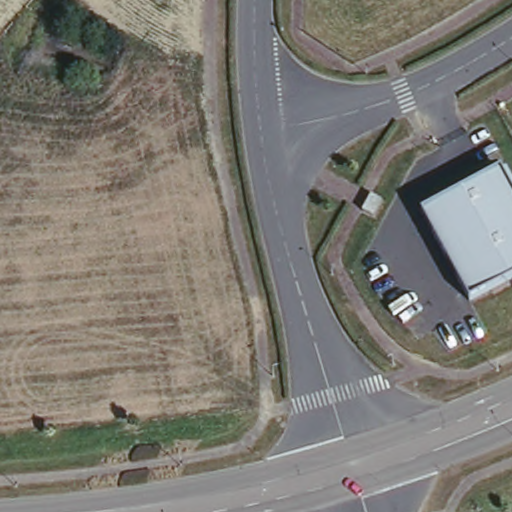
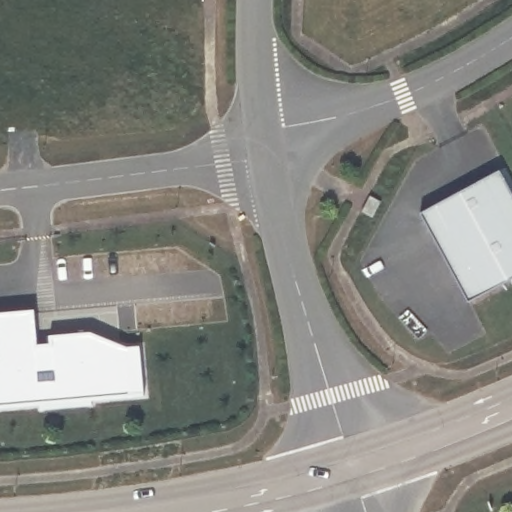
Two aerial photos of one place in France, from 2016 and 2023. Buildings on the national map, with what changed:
unchanged [(512,192),(512,279),(469,299),(426,216),(501,170),(512,192)]
new [(41,415),(41,410),(0,414),(0,318),(35,314),(39,356),(52,354),(51,340),(92,337),(128,352),(141,350),(141,354),(145,397),(145,401),(93,405),(93,411),(90,411),(44,415),(41,415)]

